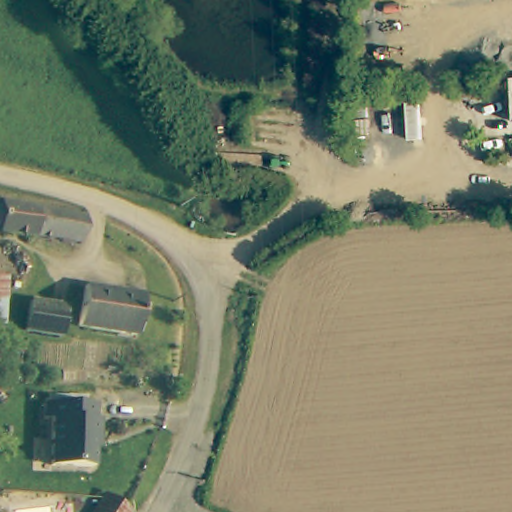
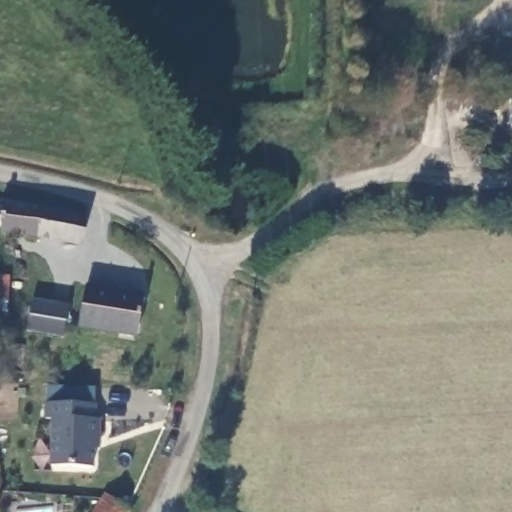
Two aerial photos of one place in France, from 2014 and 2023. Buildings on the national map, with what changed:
unchanged [(0,235),(0,205),(2,205),(4,199),(87,210),(84,243),(0,235)]
unchanged [(0,340),(0,273),(12,274),(7,340),(0,340)]
unchanged [(81,329),(87,283),(145,289),(141,339),(81,329)]
unchanged [(73,301),(70,340),(18,336),(20,297),(73,301)]
unchanged [(52,467),(52,421),(46,421),(47,405),(99,404),(99,419),(104,419),(102,449),(96,449),(96,469),(52,467)]
unchanged [(103,495),(130,511),(129,512),(93,512),(103,495)]

